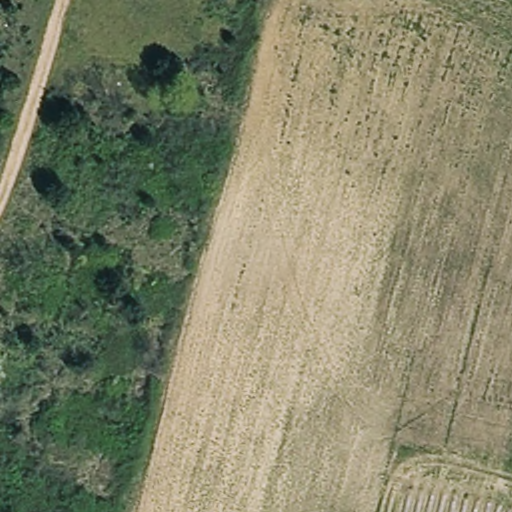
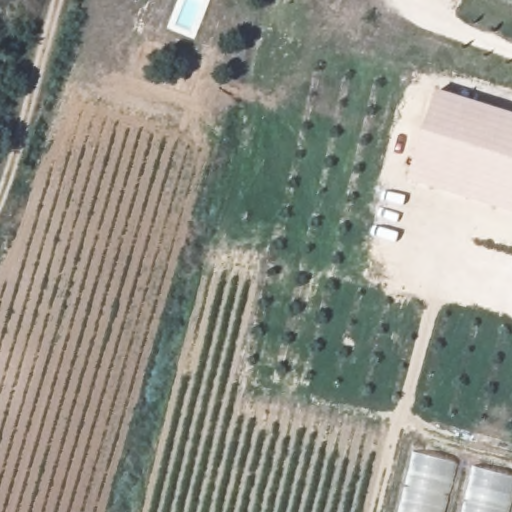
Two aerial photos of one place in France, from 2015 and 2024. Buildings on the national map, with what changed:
new [(512,124),(512,218),(416,190),(442,104),(512,124)]
new [(456,466),(444,512),(398,512),(413,453),(456,466)]
new [(512,480),(512,501),(509,512),(463,512),(474,469),(512,480)]

